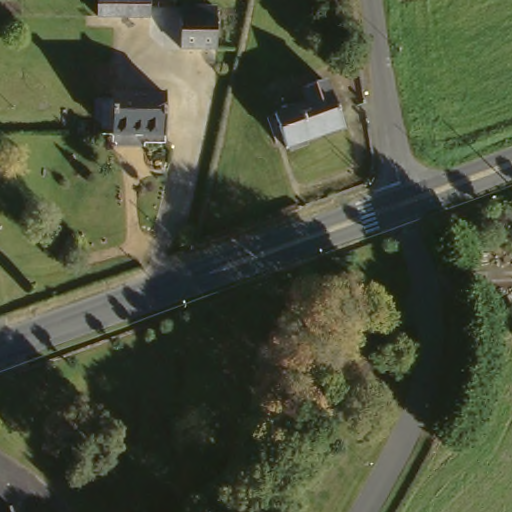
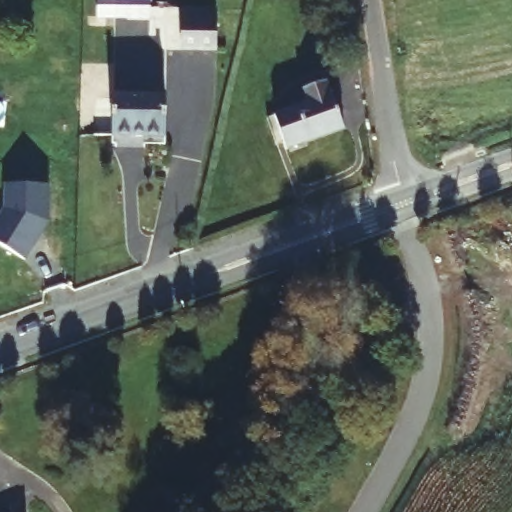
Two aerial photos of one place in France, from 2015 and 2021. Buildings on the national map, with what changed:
unchanged [(149,19),(98,18),(98,0),(150,0),(149,19)]
unchanged [(187,46),(187,14),(187,4),(221,5),(221,15),(221,46),(187,46)]
unchanged [(309,104),(304,90),(326,82),(331,97),(332,96),(344,130),(286,150),(284,143),(274,116),(309,104)]
unchanged [(166,91),(164,134),(164,142),(112,141),(112,133),(113,90),(166,91)]
new [(6,183),(47,183),(46,220),(21,257),(0,242),(0,217),(8,208),(6,183)]

